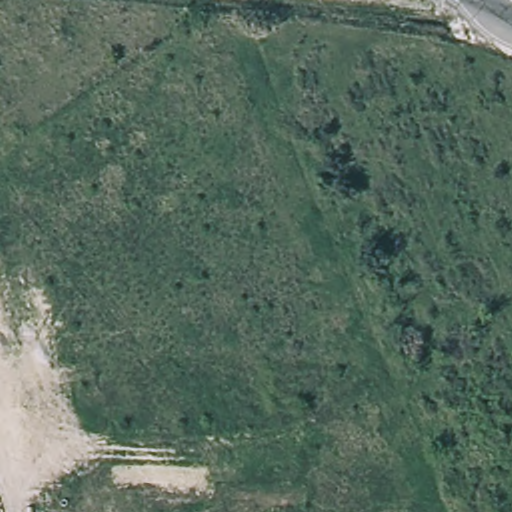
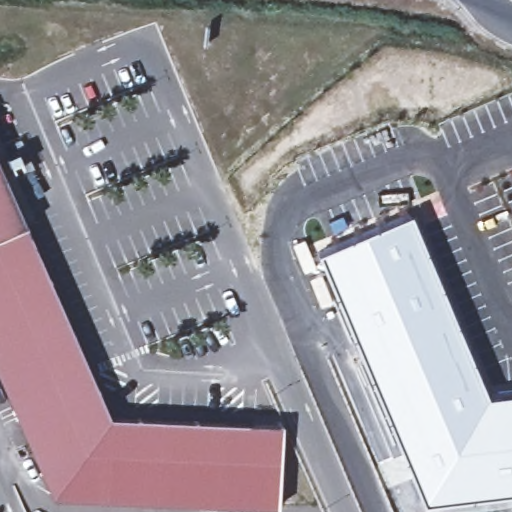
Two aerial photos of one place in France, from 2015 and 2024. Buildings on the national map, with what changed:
new [(53,499),(0,381),(0,142),(32,215),(23,221),(109,416),(280,424),(277,508),(53,499)]
new [(484,386),(512,383),(512,493),(423,502),(314,247),(407,209),(484,386)]

